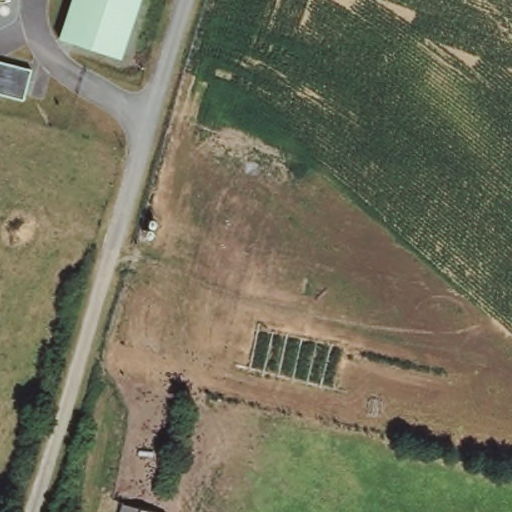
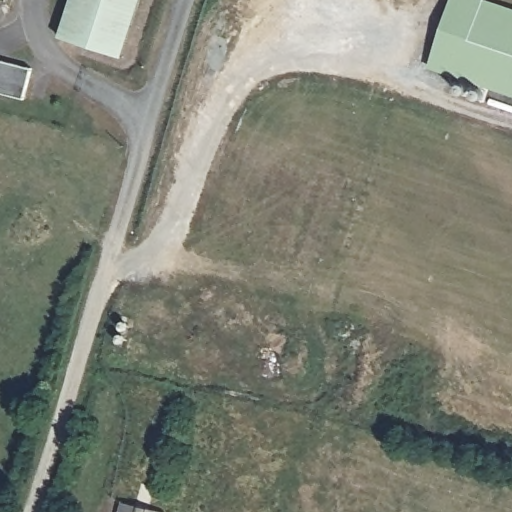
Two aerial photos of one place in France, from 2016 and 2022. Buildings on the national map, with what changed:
unchanged [(57,38),(70,0),(139,0),(121,59),(57,38)]
new [(427,69),(451,0),(484,0),(512,9),(512,97),(427,69)]
unchanged [(0,94),(0,60),(30,68),(22,100),(0,94)]
unchanged [(107,501),(149,507),(148,512),(105,512),(107,501)]

